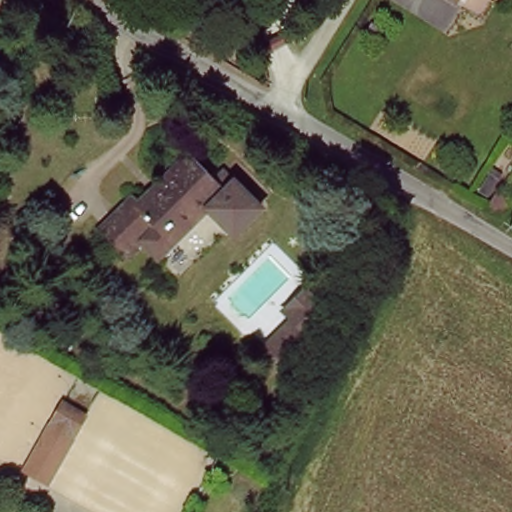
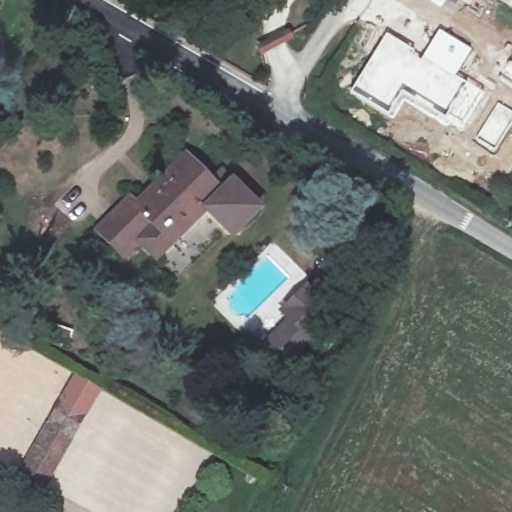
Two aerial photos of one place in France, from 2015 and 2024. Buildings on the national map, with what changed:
unchanged [(446,0),(466,0),(460,9),(446,0)]
new [(385,31),(422,54),(438,28),(473,50),(457,75),(484,91),(459,131),(404,99),(392,118),(348,91),(385,31)]
unchanged [(224,196),(178,242),(159,226),(126,262),(101,236),(134,201),(142,207),(186,159),(224,196)]
unchanged [(226,196),(218,188),(235,175),(266,210),(234,242),(209,214),(226,196)]
unchanged [(86,419),(49,485),(18,470),(57,403),(86,419)]

